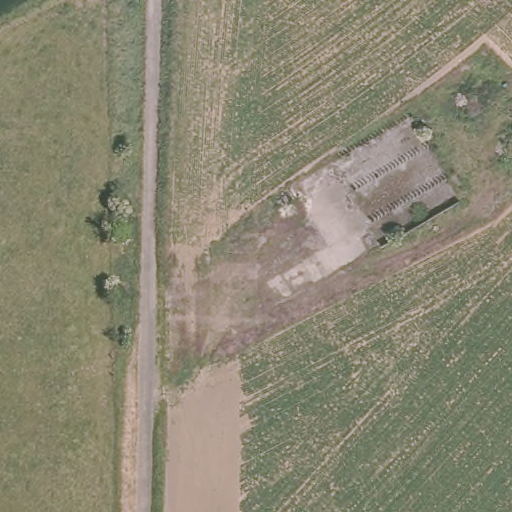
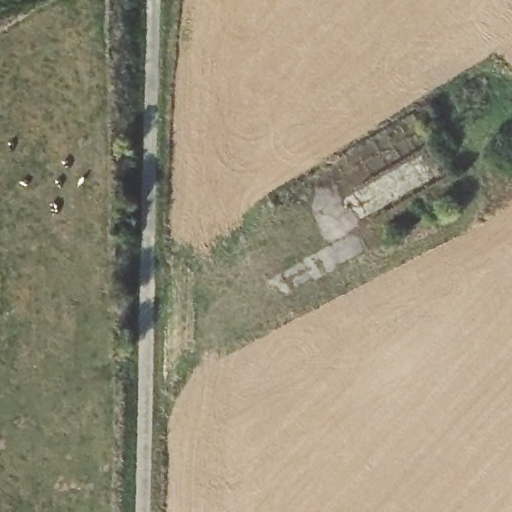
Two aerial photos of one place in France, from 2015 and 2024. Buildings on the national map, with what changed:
[]

